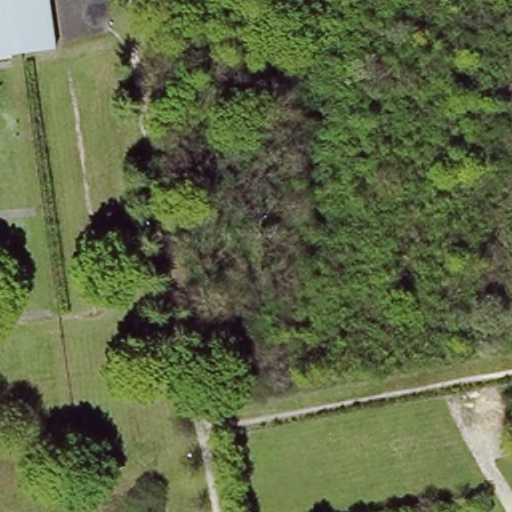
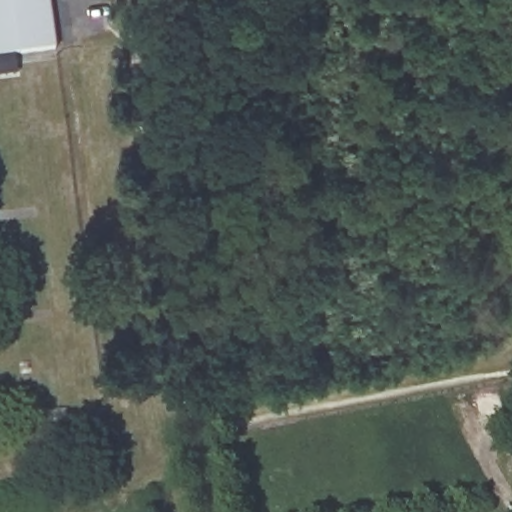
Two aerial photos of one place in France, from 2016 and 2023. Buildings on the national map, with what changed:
unchanged [(0,51),(0,0),(48,0),(55,42),(0,51)]

